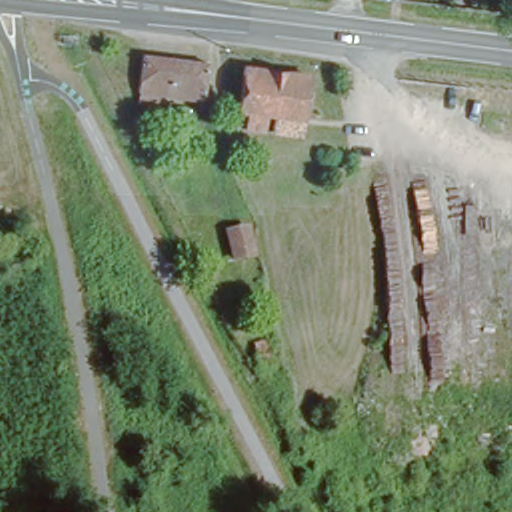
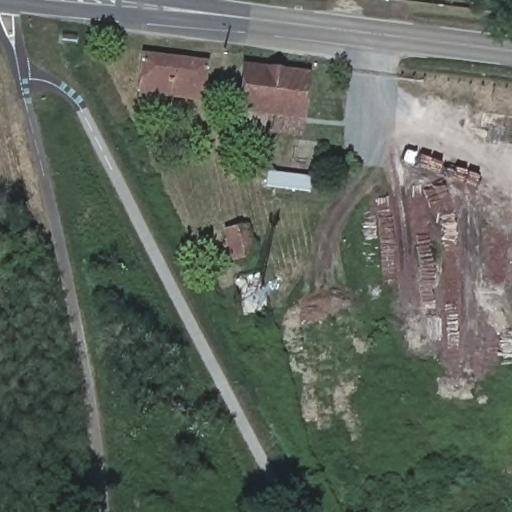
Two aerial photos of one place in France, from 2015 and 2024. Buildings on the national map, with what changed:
unchanged [(204,63),(199,99),(132,90),(137,55),(204,63)]
unchanged [(309,71),(300,129),(272,125),(276,102),(267,101),(263,128),(238,124),(245,62),(309,71)]
unchanged [(233,254),(227,229),(246,224),(252,250),(233,254)]
unchanged [(252,384),(248,359),(261,358),(265,382),(252,384)]

